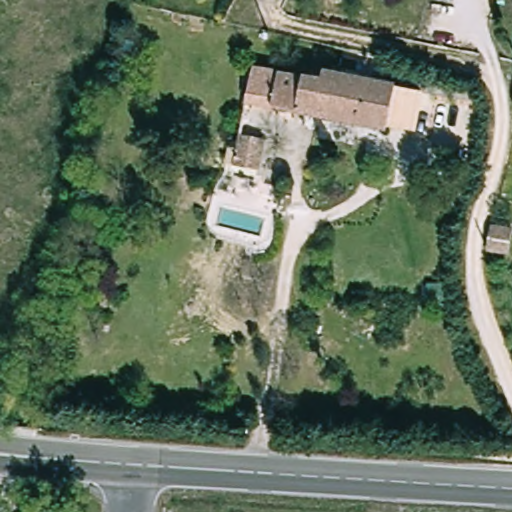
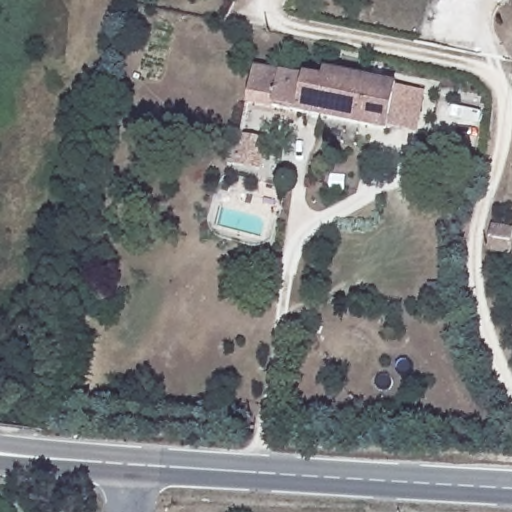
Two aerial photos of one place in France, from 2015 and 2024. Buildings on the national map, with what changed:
unchanged [(391,129),(252,101),(258,68),(327,79),(329,71),(400,82),(398,88),(397,99),(392,125),(391,129)]
unchanged [(428,93),(422,130),(392,125),(397,99),(398,88),(428,93)]
unchanged [(263,140),(258,170),(235,165),(240,135),(263,140)]
unchanged [(512,228),(512,234),(508,252),(487,250),(492,225),(512,228)]

